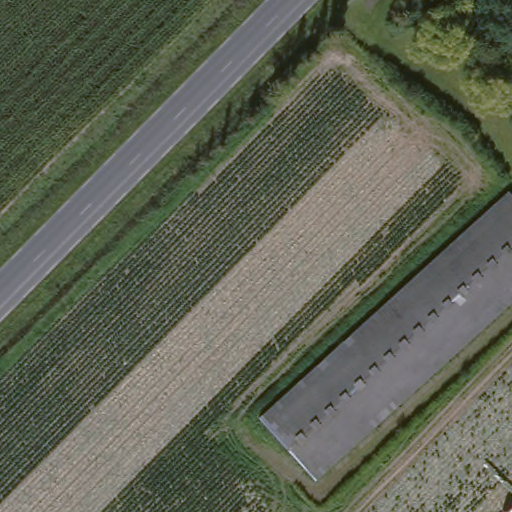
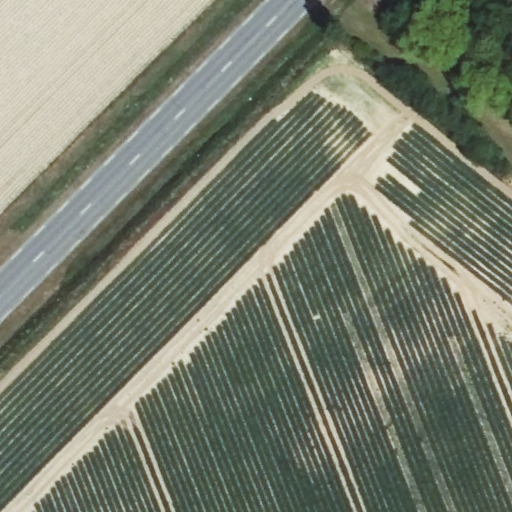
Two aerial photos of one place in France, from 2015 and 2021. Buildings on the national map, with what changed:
demolished [(510,192),(512,195),(512,297),(311,476),(259,416),(510,192)]

